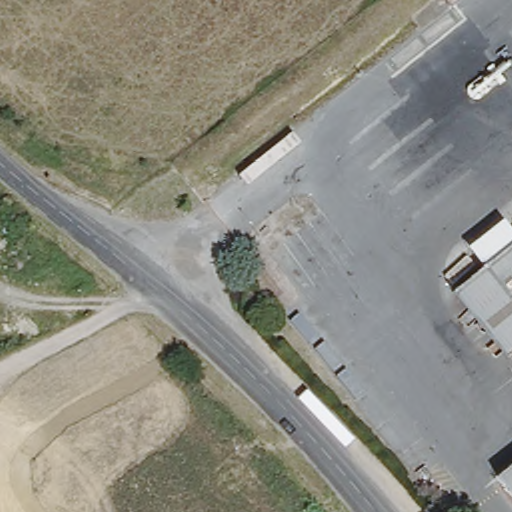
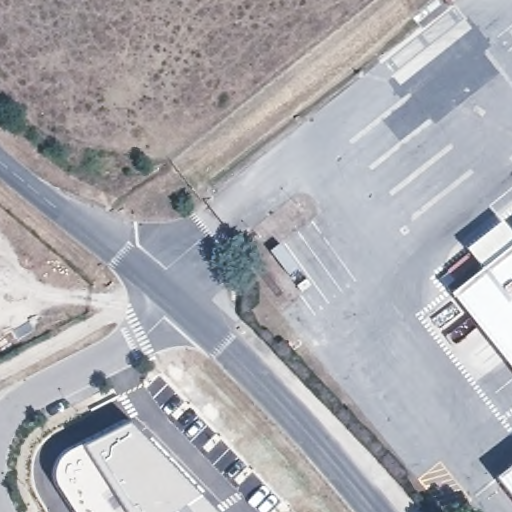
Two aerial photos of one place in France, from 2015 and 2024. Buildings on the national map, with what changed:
new [(504,221),(512,232),(512,243),(481,268),(467,250),(504,221)]
unchanged [(481,268),(512,243),(512,369),(452,292),(481,268)]
new [(57,462),(65,452),(132,420),(189,477),(221,512),(72,512),(57,487),(54,476),(57,462)]
unchanged [(512,464),(512,495),(497,477),(512,464)]

